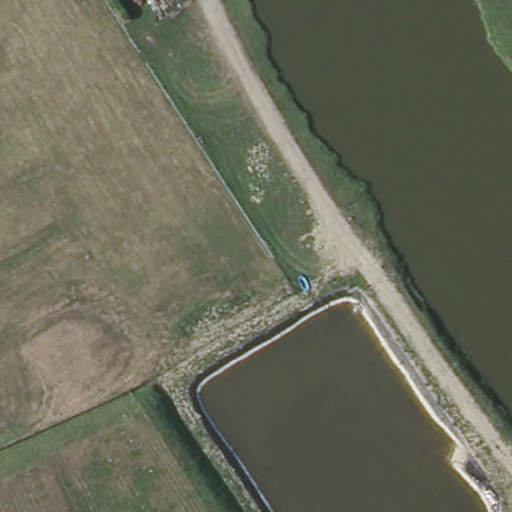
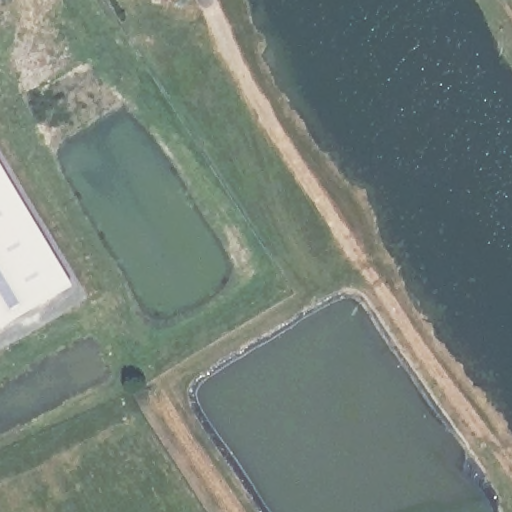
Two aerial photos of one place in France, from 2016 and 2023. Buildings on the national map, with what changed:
unchanged [(166,0),(170,0),(167,2),(166,0)]
new [(0,329),(0,164),(70,287),(0,329)]

